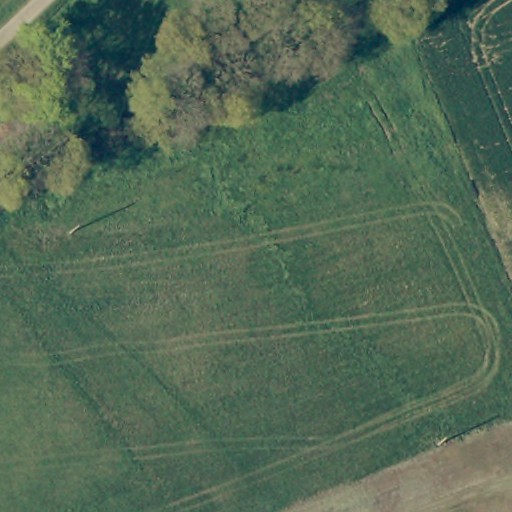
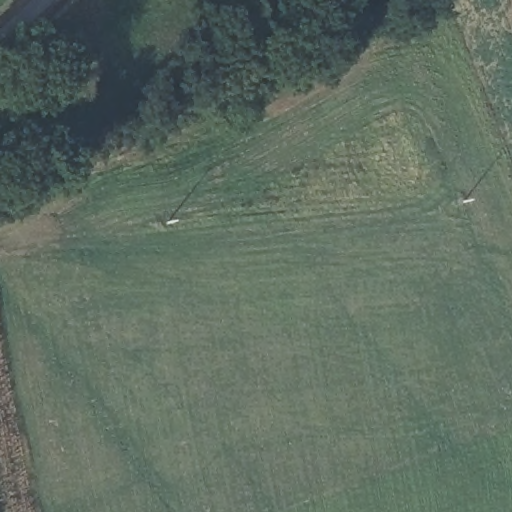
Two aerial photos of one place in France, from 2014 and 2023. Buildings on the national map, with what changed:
[]

